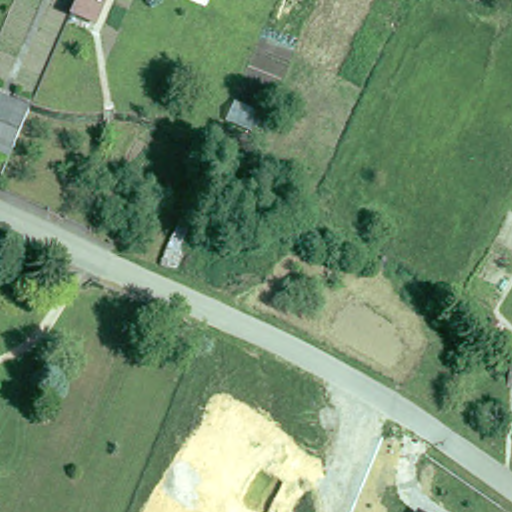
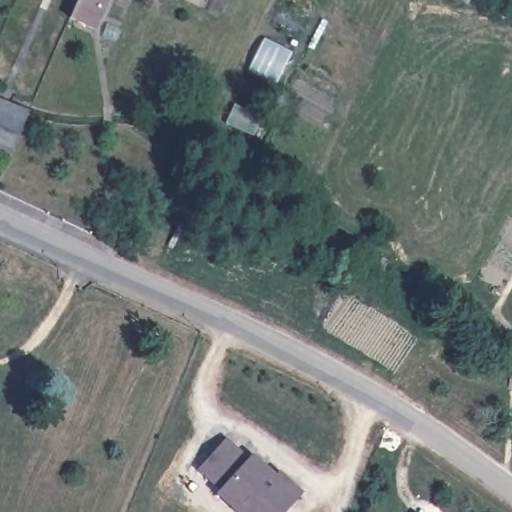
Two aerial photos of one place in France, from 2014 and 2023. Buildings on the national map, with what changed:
unchanged [(94,28),(71,17),(78,0),(107,0),(94,28)]
unchanged [(0,100),(27,110),(11,154),(0,149),(0,100)]
new [(252,453),(276,473),(279,471),(304,493),(286,512),(235,512),(216,495),(219,491),(197,470),(227,437),(249,457),(252,453)]

